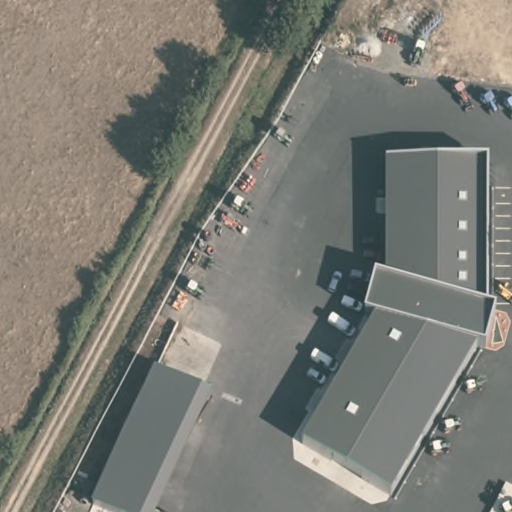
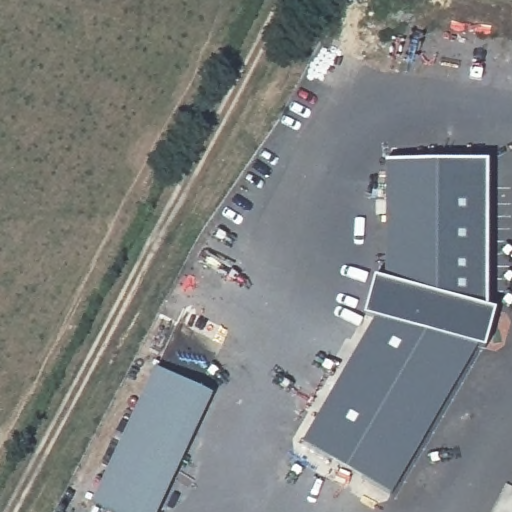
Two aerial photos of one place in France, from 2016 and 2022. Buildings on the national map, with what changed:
unchanged [(487,307),(496,310),(484,348),(476,346),(390,496),(300,444),(375,319),(367,315),(375,279),(383,280),(383,161),(487,161),(487,307)]
unchanged [(157,512),(110,512),(90,502),(154,368),(203,392),(211,397),(157,512)]

